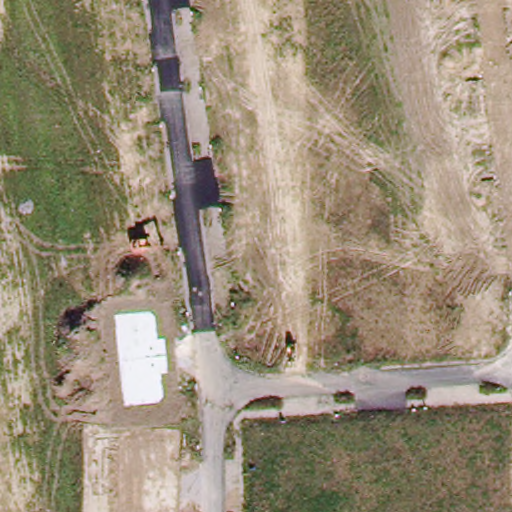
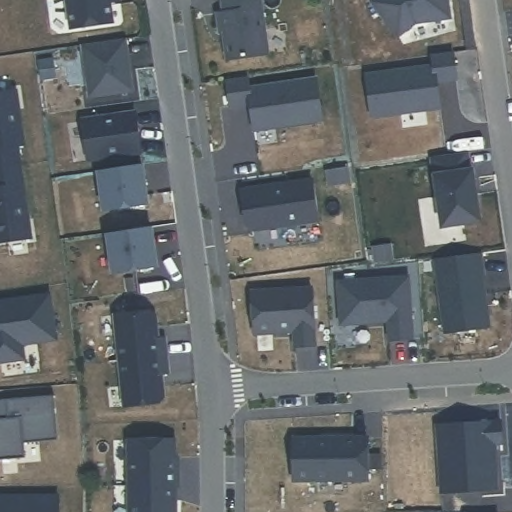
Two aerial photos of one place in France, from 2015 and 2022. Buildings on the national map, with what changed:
new [(70,28),(66,0),(108,0),(111,22),(70,28)]
new [(221,0),(260,0),(267,53),(226,59),(222,30),(218,31),(216,13),(222,11),(221,0)]
new [(447,0),(449,18),(414,22),(396,36),(370,1),(372,0),(447,0)]
new [(124,38),(131,90),(88,96),(81,44),(124,38)]
new [(365,76),(432,66),(431,54),(452,51),(455,78),(435,81),(439,107),(371,116),(365,76)]
new [(246,76),(248,88),(315,78),(321,121),(253,130),(249,104),(229,106),(225,79),(246,76)]
new [(23,145),(17,145),(19,164),(0,167),(0,92),(16,90),(23,145)]
new [(85,121),(138,114),(144,154),(91,161),(85,121)]
new [(465,151),(468,170),(471,169),(479,221),(441,226),(431,156),(465,151)]
new [(30,238),(0,242),(0,167),(19,164),(30,238)]
new [(141,164),(146,203),(102,210),(97,170),(141,164)]
new [(311,179),(316,220),(252,229),(245,224),(240,190),(311,179)]
new [(150,227),(156,266),(112,272),(106,233),(150,227)]
new [(479,252),(482,275),(481,275),(484,296),(481,297),(482,304),(485,304),(488,326),(444,332),(433,259),(479,252)]
new [(411,338),(388,340),(387,320),(340,324),(337,282),(407,276),(411,338)]
new [(310,288),(314,345),(293,347),(292,331),(253,334),(251,292),(310,288)]
new [(48,294),(55,339),(21,343),(23,358),(0,361),(0,301),(48,294)]
new [(113,314),(156,311),(159,339),(165,338),(170,374),(162,375),(165,403),(122,408),(113,314)]
new [(53,395),(57,440),(23,442),(24,457),(0,459),(0,399),(53,395)]
new [(366,437),(367,479),(292,480),(292,438),(366,437)]
new [(177,468),(177,485),(174,485),(128,485),(127,439),(174,438),(174,456),(177,456),(177,468)]
new [(174,485),(175,512),(129,512),(128,485),(174,485)]
new [(57,495),(57,512),(0,512),(0,495),(57,495)]

